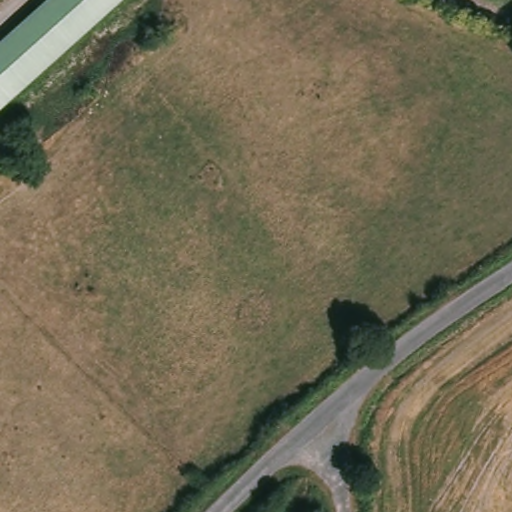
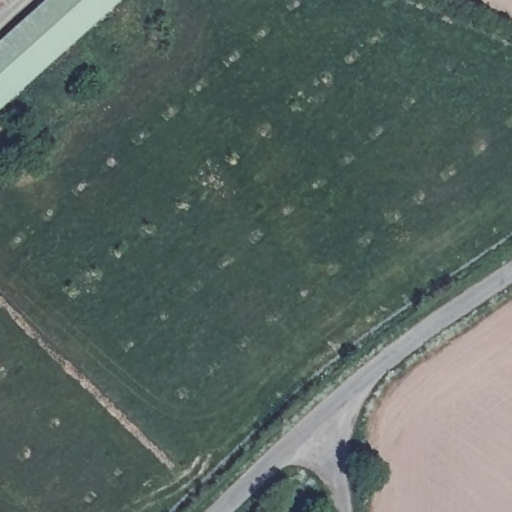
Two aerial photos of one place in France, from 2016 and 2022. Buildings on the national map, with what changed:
unchanged [(0,44),(48,0),(121,0),(0,107),(0,44)]

